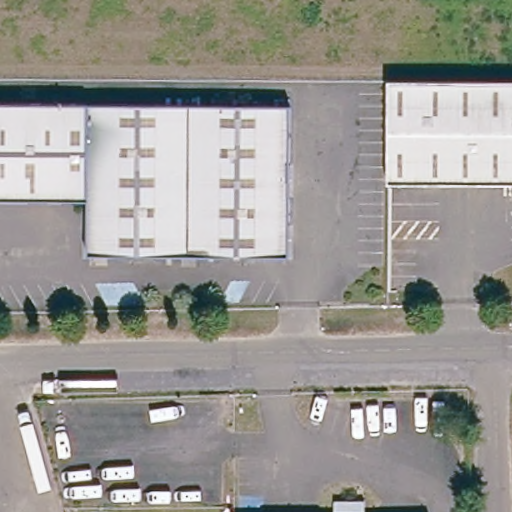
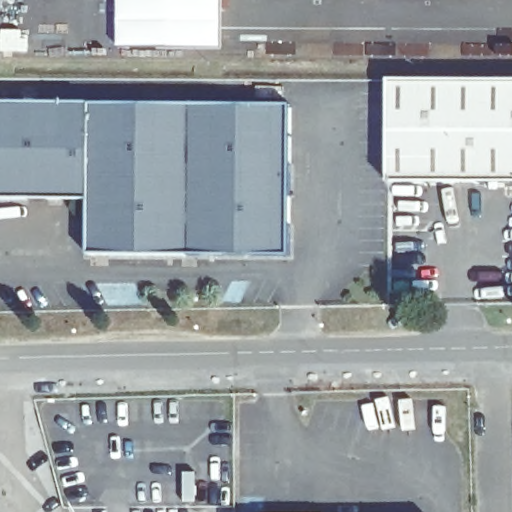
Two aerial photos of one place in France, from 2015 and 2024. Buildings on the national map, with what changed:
new [(116,48),(116,0),(222,0),(221,49),(116,48)]
new [(2,29),(27,29),(27,52),(1,54),(2,29)]
unchanged [(512,180),(385,180),(386,77),(512,78),(512,180)]
unchanged [(286,101),(285,254),(82,252),(83,197),(0,196),(0,99),(286,101)]

